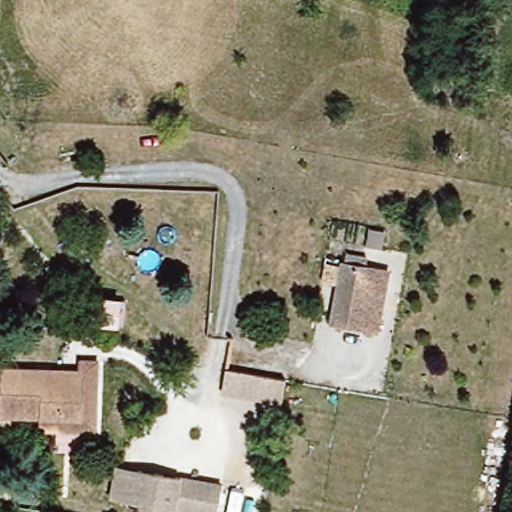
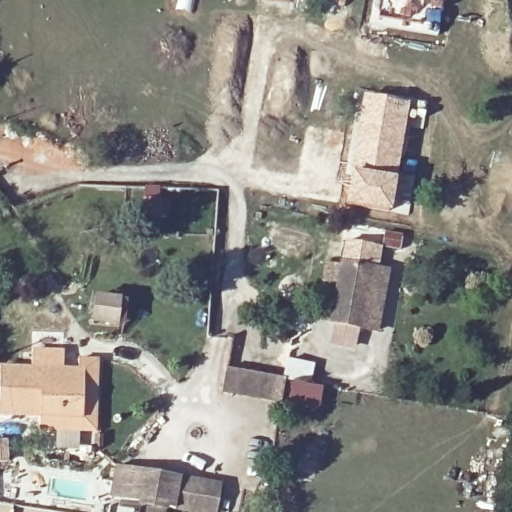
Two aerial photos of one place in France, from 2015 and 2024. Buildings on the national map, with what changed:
new [(343,175),(360,93),(426,103),(422,125),(407,122),(391,215),(338,207),(343,175)]
unchanged [(332,323),(341,264),(370,268),(387,271),(382,303),(378,329),(332,323)]
unchanged [(79,421),(82,373),(77,372),(77,358),(97,361),(92,421),(91,434),(85,434),(37,431),(37,419),(79,421)]
unchanged [(62,371),(77,372),(82,373),(79,421),(37,419),(0,417),(0,367),(62,371)]
new [(318,409),(222,393),(226,368),(322,384),(318,409)]
unchanged [(219,512),(158,512),(109,504),(112,469),(224,485),(219,512)]

